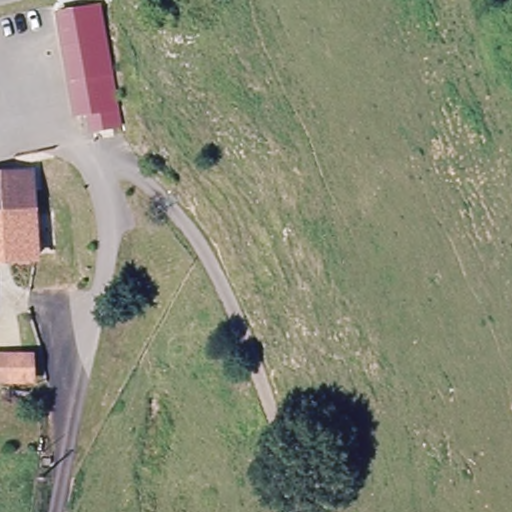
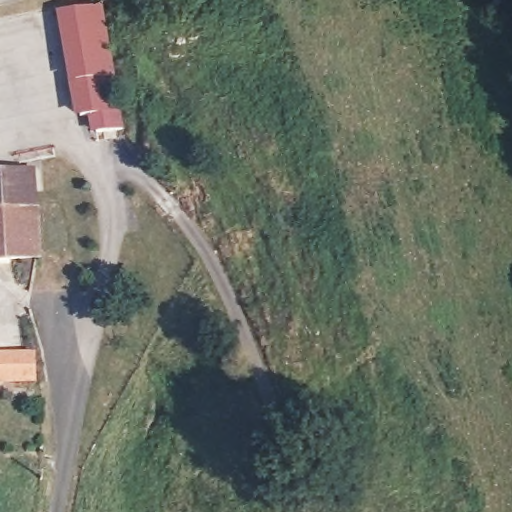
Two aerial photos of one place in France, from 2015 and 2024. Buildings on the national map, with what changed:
unchanged [(93,131),(90,114),(77,115),(61,11),(101,4),(117,109),(120,128),(93,131)]
unchanged [(29,174),(31,210),(52,207),(57,251),(50,252),(34,254),(0,255),(0,175),(29,174)]
unchanged [(31,388),(0,385),(0,361),(33,364),(31,388)]

